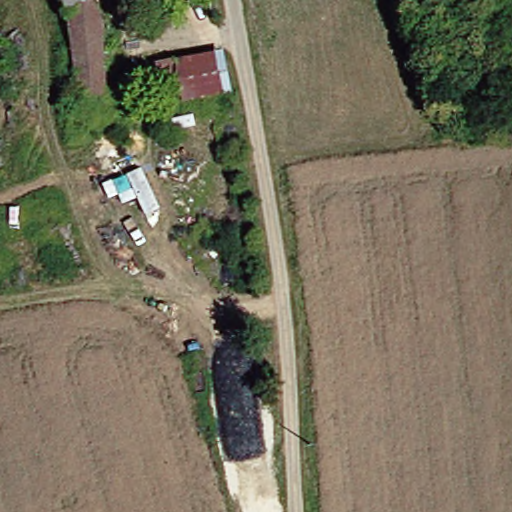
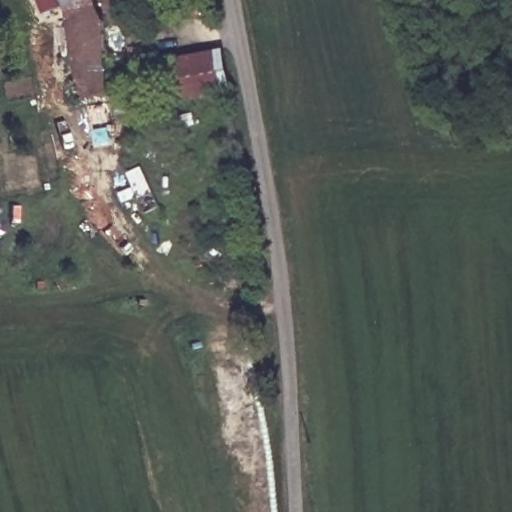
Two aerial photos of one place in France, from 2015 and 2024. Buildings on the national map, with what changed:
unchanged [(85,97),(83,71),(79,7),(76,0),(107,0),(113,15),(109,69),(107,94),(85,97)]
unchanged [(228,82),(190,87),(185,53),(218,45),(228,82)]
unchanged [(163,85),(119,92),(126,70),(159,64),(163,85)]

